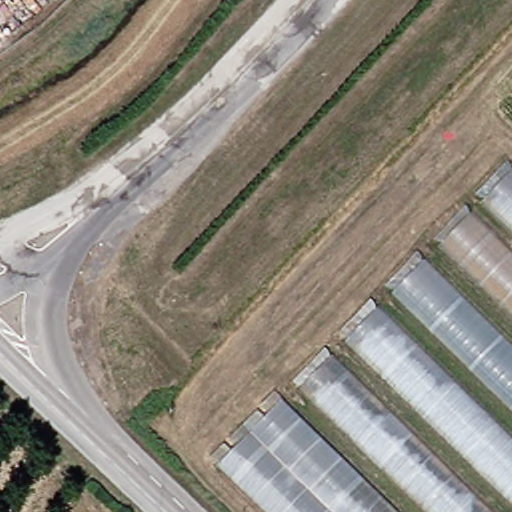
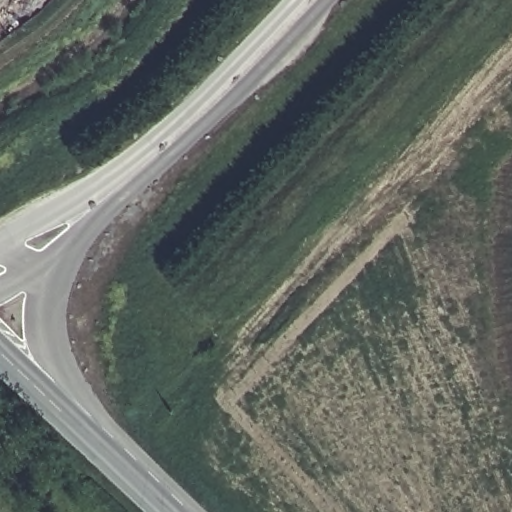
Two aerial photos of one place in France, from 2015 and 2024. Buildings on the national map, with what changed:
demolished [(512,179),(512,229),(479,197),(503,171),(512,179)]
demolished [(512,267),(512,317),(436,244),(461,218),(512,267)]
demolished [(512,355),(512,408),(389,291),(415,262),(512,355)]
demolished [(512,449),(512,498),(342,341),(368,310),(512,449)]
demolished [(323,361),(481,512),(429,512),(297,384),(323,361)]
demolished [(215,464),(273,404),(387,512),(265,512),(215,464)]

